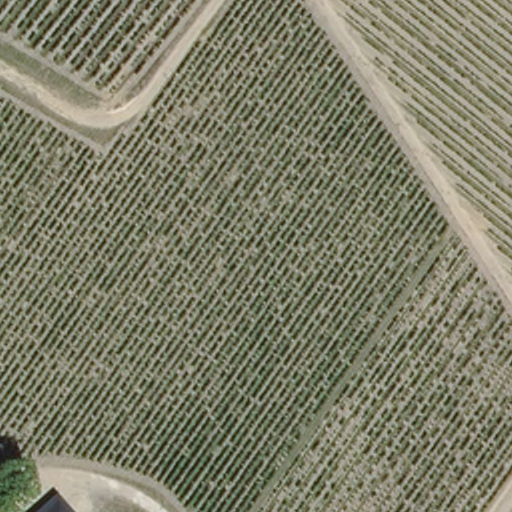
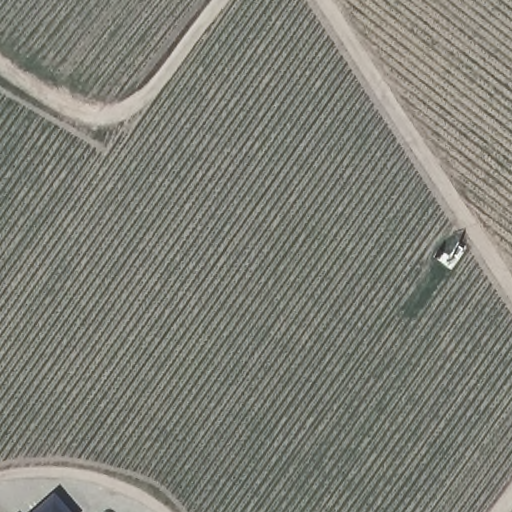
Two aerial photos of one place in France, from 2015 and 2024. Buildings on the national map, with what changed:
unchanged [(53,495),(68,512),(32,512),(53,495)]

